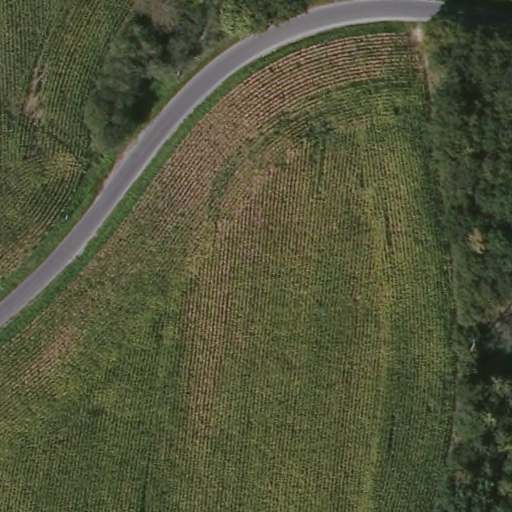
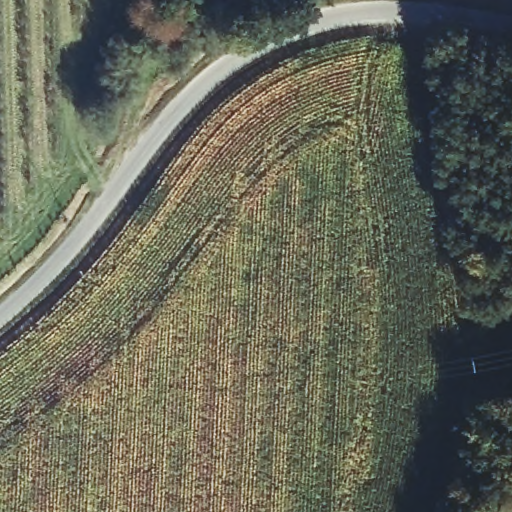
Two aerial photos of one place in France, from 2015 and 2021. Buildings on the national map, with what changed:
[]

